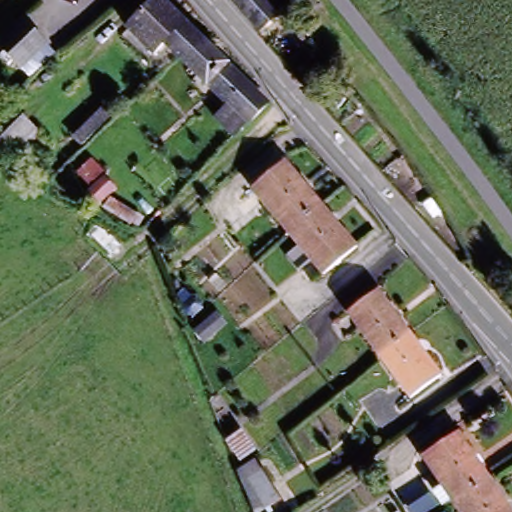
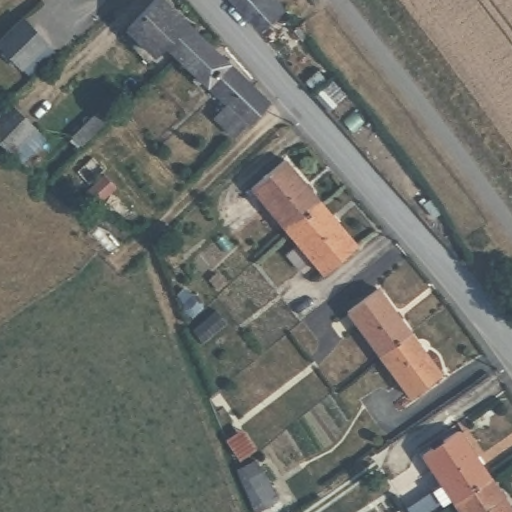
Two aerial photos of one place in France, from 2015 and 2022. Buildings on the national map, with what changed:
unchanged [(219,99),(200,81),(171,51),(177,45),(174,43),(155,59),(130,29),(146,13),(140,7),(149,0),(164,0),(181,18),(207,43),(222,58),(264,102),(242,122),(230,126),(225,132),(205,113),(219,99)]
unchanged [(272,12),(287,29),(270,45),(255,28),(231,0),(230,0),(261,0),(272,12)]
unchanged [(0,46),(0,36),(22,17),(44,45),(18,68),(0,46)]
unchanged [(113,118),(83,148),(78,136),(104,108),(113,118)]
unchanged [(7,112),(25,133),(1,152),(0,151),(0,118),(7,112)]
unchanged [(256,191),(290,166),(319,205),(287,234),(256,191)]
unchanged [(319,205),(353,249),(317,276),(287,234),(319,205)]
unchanged [(378,354),(349,315),(378,292),(408,331),(378,354)]
unchanged [(438,371),(408,394),(378,354),(408,331),(438,371)]
unchanged [(422,462),(457,438),(486,482),(451,505),(422,462)]
unchanged [(276,496),(271,498),(261,506),(247,482),(256,476),(260,470),(276,496)]
unchanged [(486,482),(505,512),(455,512),(451,505),(486,482)]

